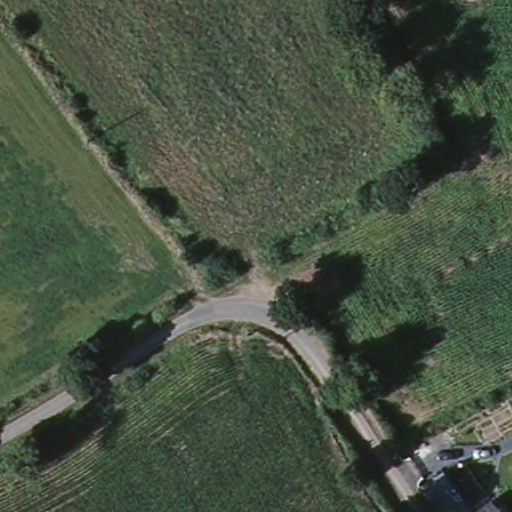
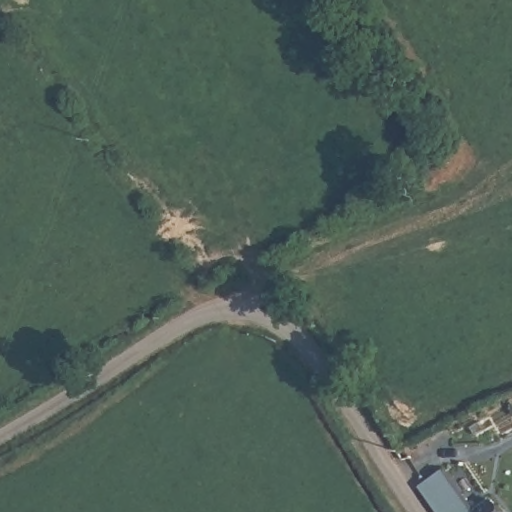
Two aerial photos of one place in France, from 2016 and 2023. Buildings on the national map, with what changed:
unchanged [(425,488),(448,471),(474,512),(442,512),(425,488)]
unchanged [(506,512),(475,512),(495,499),(506,512)]

